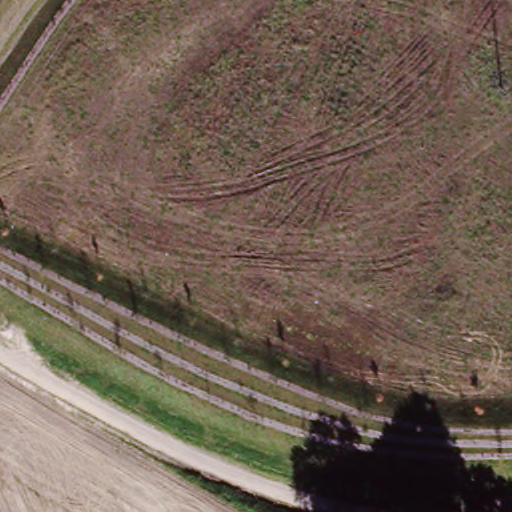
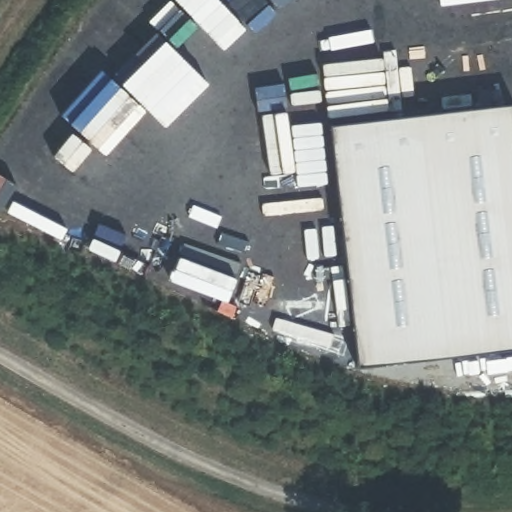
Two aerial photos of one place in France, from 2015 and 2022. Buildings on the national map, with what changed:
new [(512,353),(367,372),(335,131),(512,107),(512,353)]

